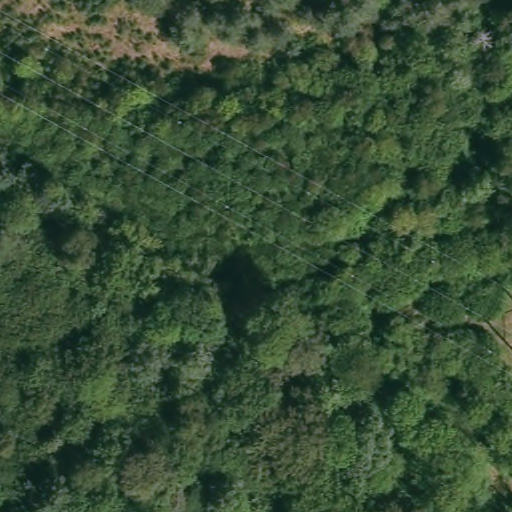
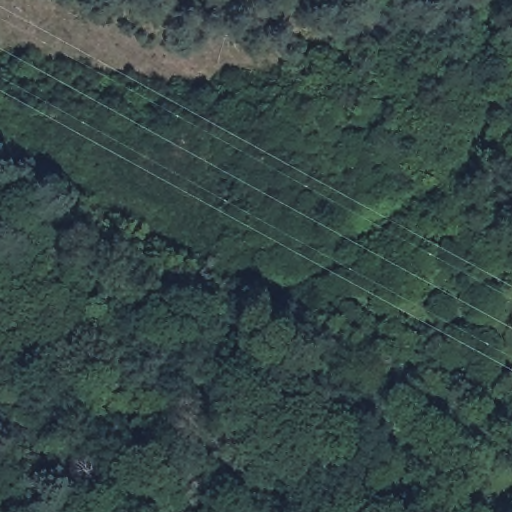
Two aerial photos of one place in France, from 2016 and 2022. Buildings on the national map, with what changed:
[]

